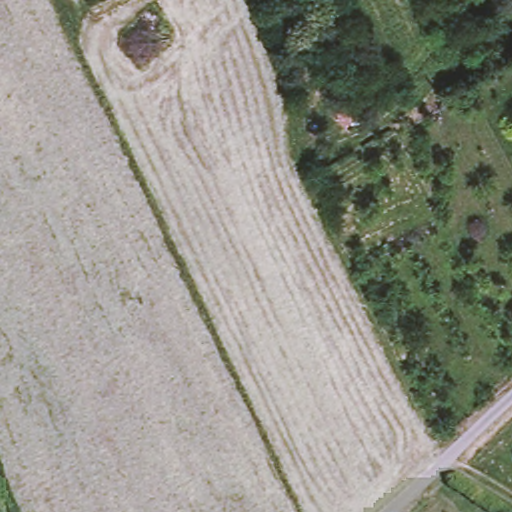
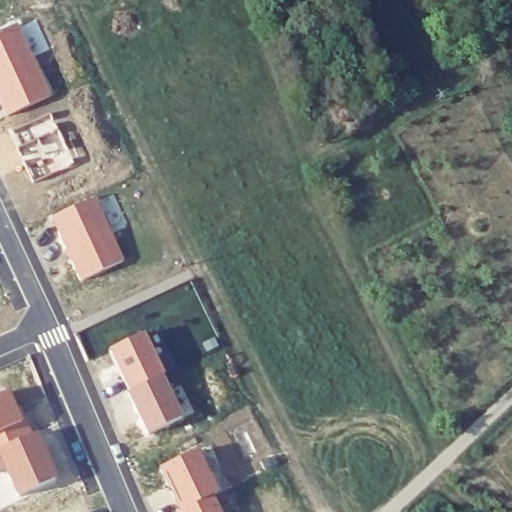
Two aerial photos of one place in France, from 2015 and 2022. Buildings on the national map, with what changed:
new [(18,23),(51,95),(7,115),(0,100),(0,30),(18,23)]
new [(51,113),(74,163),(33,184),(10,131),(51,113)]
new [(96,196),(125,259),(80,280),(51,215),(96,196)]
new [(144,332),(166,372),(163,374),(183,414),(150,433),(129,391),(131,389),(110,348),(144,332)]
new [(10,388),(23,420),(25,419),(31,433),(38,431),(58,476),(19,496),(7,468),(0,471),(0,393),(10,388)]
new [(199,448),(221,492),(214,495),(222,512),(179,512),(178,511),(181,509),(159,466),(199,448)]

